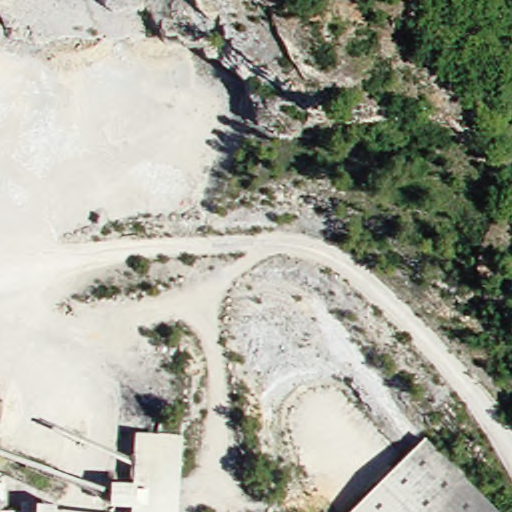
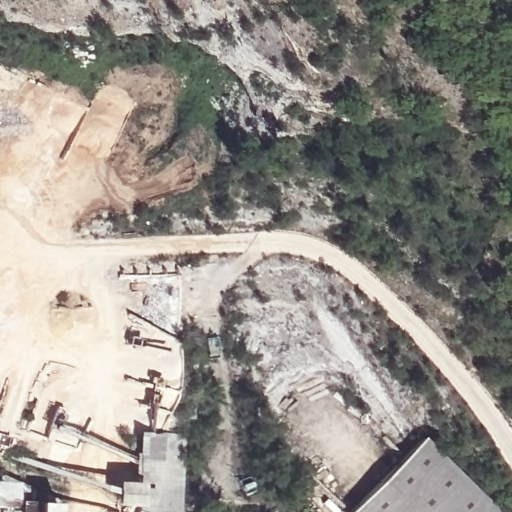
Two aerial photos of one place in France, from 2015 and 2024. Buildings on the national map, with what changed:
unchanged [(134,512),(133,508),(116,507),(118,484),(139,484),(141,435),(184,437),(184,512),(134,512)]
unchanged [(496,512),(354,512),(424,443),(496,512)]
unchanged [(0,482),(5,482),(4,510),(0,510),(0,482)]

